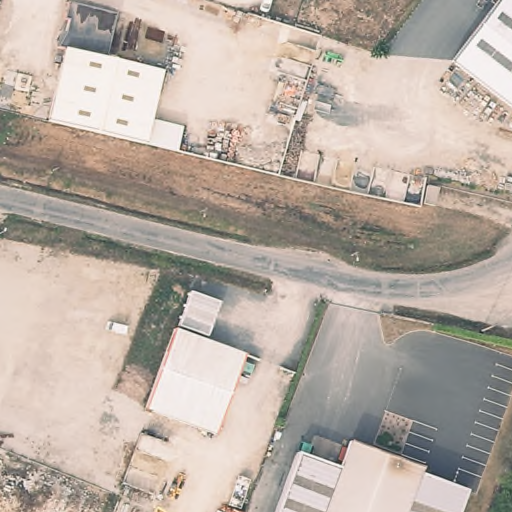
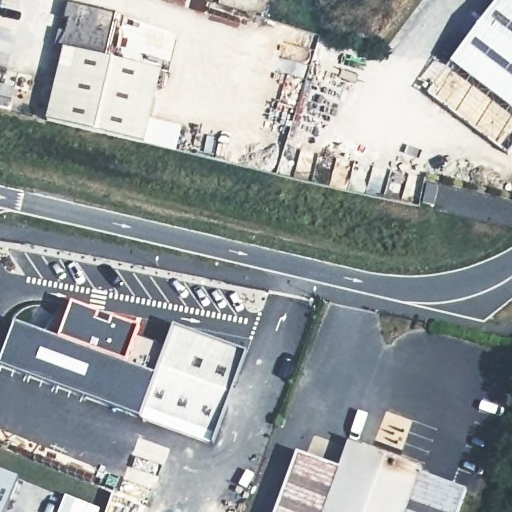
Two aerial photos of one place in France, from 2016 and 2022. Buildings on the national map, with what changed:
unchanged [(500,0),(512,0),(512,109),(451,61),(500,0)]
unchanged [(116,13),(105,57),(163,72),(151,119),(183,127),(177,152),(45,120),(66,21),(64,21),(69,1),(116,13)]
new [(44,333),(62,309),(67,316),(70,304),(140,329),(136,339),(165,348),(156,374),(144,406),(214,432),(217,435),(213,446),(137,421),(138,418),(0,368),(0,360),(13,324),(44,333)]
unchanged [(172,329),(242,354),(214,432),(144,406),(172,329)]
demolished [(393,411),(419,419),(406,454),(380,444),(393,411)]
unchanged [(299,452),(344,468),(354,441),(424,466),(422,472),(469,489),(461,512),(277,512),(299,452)]

